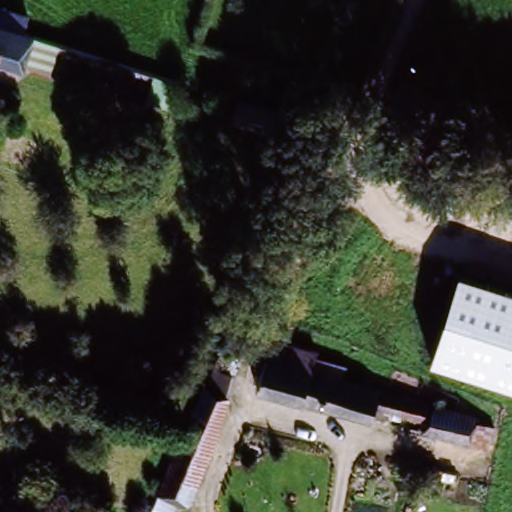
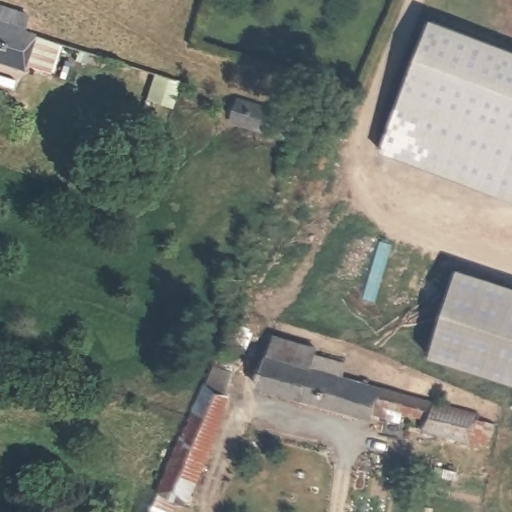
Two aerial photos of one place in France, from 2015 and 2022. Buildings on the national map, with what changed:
new [(512,51),(512,202),(381,151),(432,20),(512,51)]
unchanged [(26,78),(0,70),(0,22),(40,34),(38,38),(26,78)]
unchanged [(232,130),(239,108),(289,123),(282,146),(232,130)]
unchanged [(431,357),(457,273),(512,291),(512,383),(431,357)]
unchanged [(252,358),(264,361),(268,344),(306,353),(302,372),(456,406),(449,437),(420,431),(423,419),(361,406),(359,415),(245,388),(252,358)]
unchanged [(229,394),(187,508),(174,503),(160,497),(193,411),(206,384),(229,394)]
unchanged [(160,497),(174,503),(171,512),(155,512),(157,504),(160,497)]

